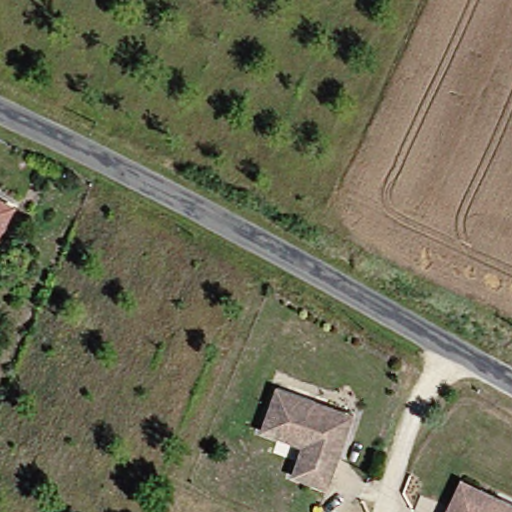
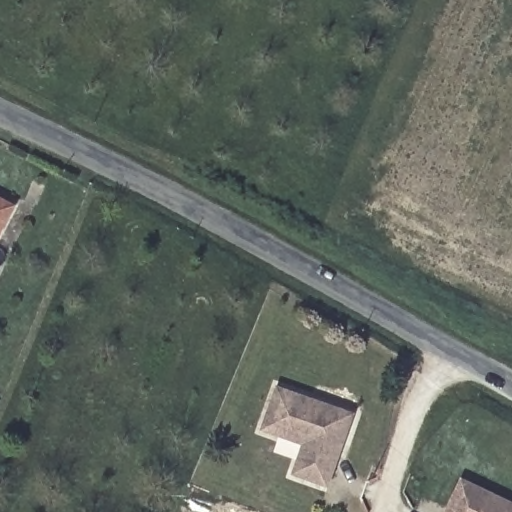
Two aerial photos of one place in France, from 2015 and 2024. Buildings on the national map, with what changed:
unchanged [(279,473),(291,445),(249,427),(266,383),(301,398),(343,415),(339,428),(314,487),(279,473)]
unchanged [(448,476),(491,493),(512,503),(512,512),(431,512),(448,476)]

